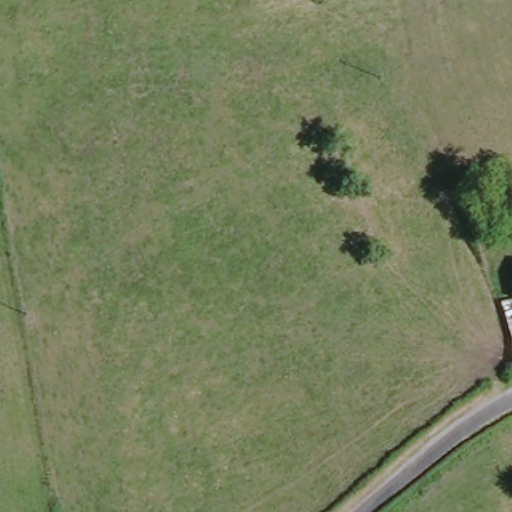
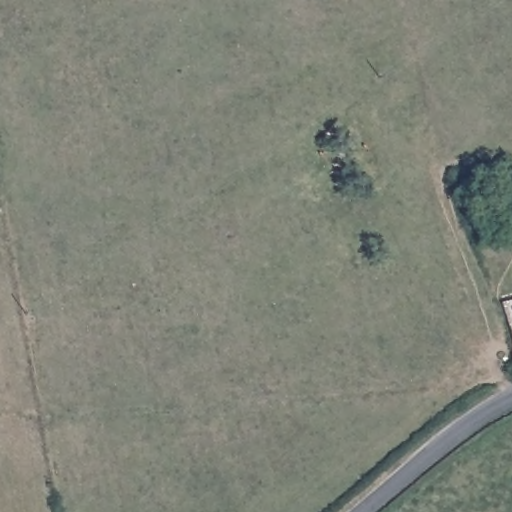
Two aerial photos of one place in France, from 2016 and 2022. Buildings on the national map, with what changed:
[]

